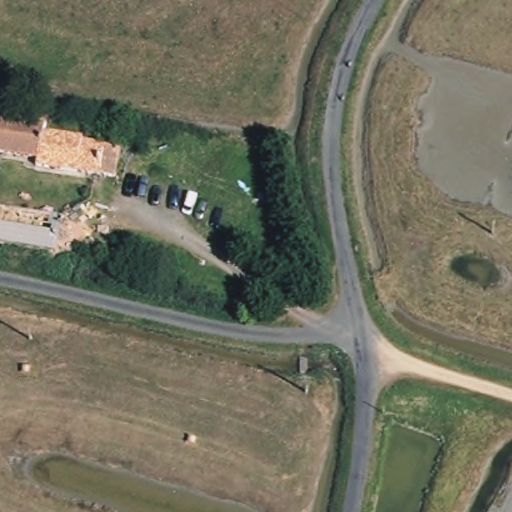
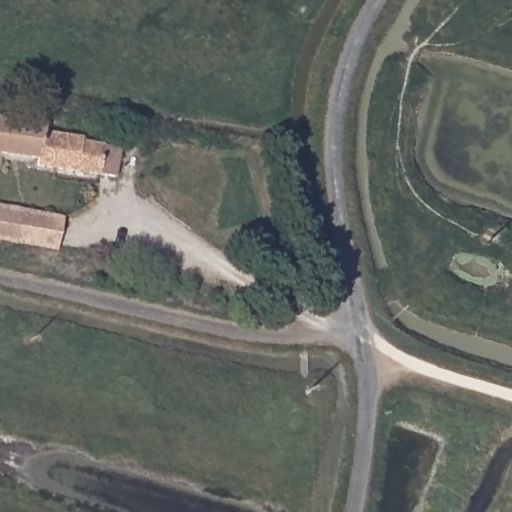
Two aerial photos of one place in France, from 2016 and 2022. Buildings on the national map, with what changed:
unchanged [(42,126),(40,135),(34,167),(0,162),(0,118),(26,123),(42,126)]
unchanged [(115,150),(111,175),(99,173),(96,186),(42,177),(32,176),(34,167),(40,135),(115,150)]
unchanged [(50,247),(0,241),(0,209),(55,217),(50,247)]

